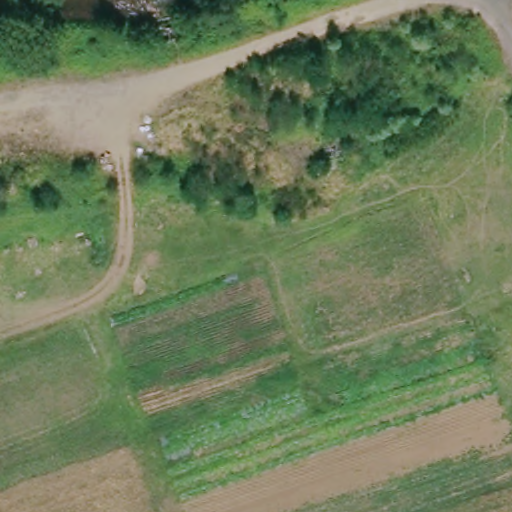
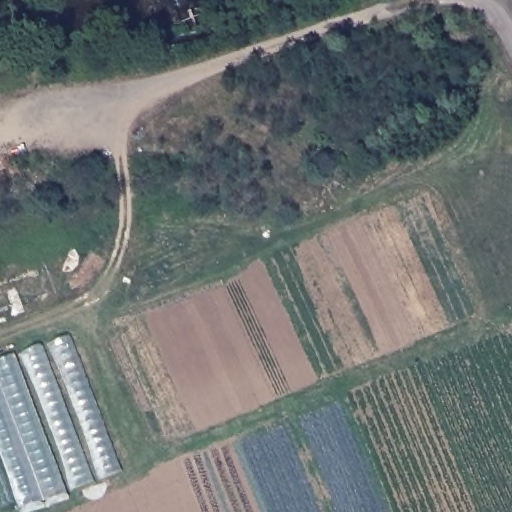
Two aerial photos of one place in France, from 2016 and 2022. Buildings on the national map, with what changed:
new [(67,334),(118,463),(63,483),(70,498),(23,512),(0,512),(0,357),(67,334)]

